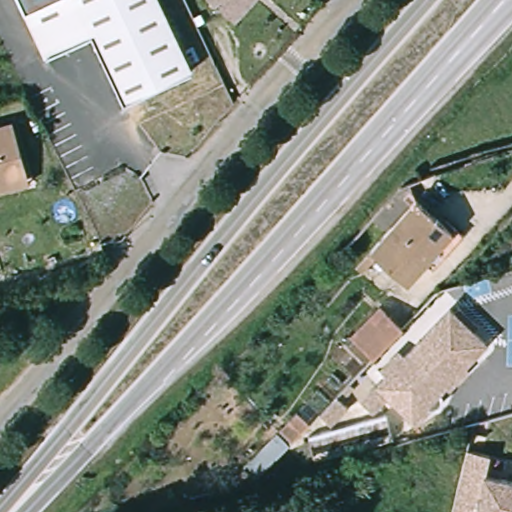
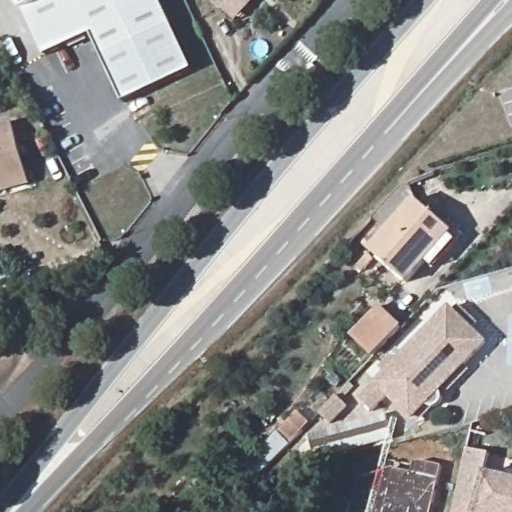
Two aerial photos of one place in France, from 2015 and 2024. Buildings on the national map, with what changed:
unchanged [(27,4),(25,0),(35,0),(27,4)]
unchanged [(191,64),(123,94),(91,30),(48,49),(27,4),(35,0),(160,0),(191,64)]
unchanged [(235,15),(220,2),(217,0),(263,0),(244,23),(235,15)]
unchanged [(0,194),(0,124),(11,121),(26,175),(29,186),(0,194)]
unchanged [(470,240),(443,270),(432,262),(411,281),(375,249),(395,229),(376,210),(406,179),(470,240)]
unchanged [(372,250),(359,261),(354,256),(366,244),(372,250)]
unchanged [(498,339),(415,423),(385,395),(373,408),(359,395),(454,296),(498,339)]
unchanged [(368,360),(345,338),(374,307),(398,329),(368,360)]
unchanged [(32,325),(18,341),(7,332),(21,315),(32,325)]
unchanged [(250,485),(238,473),(299,410),(310,421),(250,485)]
unchanged [(309,435),(386,413),(393,436),(314,459),(309,435)]
unchanged [(485,450),(492,451),(486,470),(477,512),(455,512),(471,446),(485,450)]
new [(353,512),(362,478),(403,460),(443,466),(432,512),(353,512)]
unchanged [(512,476),(512,512),(477,512),(486,470),(512,476)]

